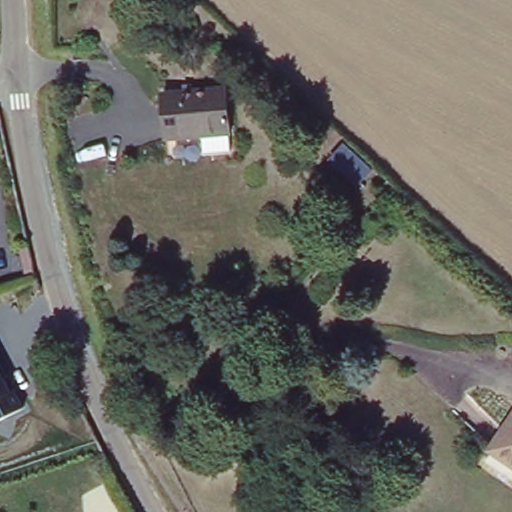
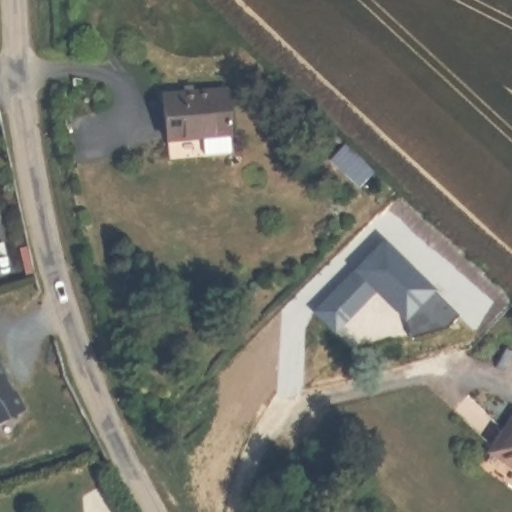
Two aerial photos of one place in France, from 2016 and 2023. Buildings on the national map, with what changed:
unchanged [(220,90),(226,132),(163,140),(157,98),(220,90)]
new [(381,242),(456,315),(443,327),(408,338),(402,318),(373,290),(332,332),(313,312),(381,242)]
unchanged [(0,365),(21,408),(0,420),(0,365)]
unchanged [(512,423),(512,473),(489,457),(512,423)]

